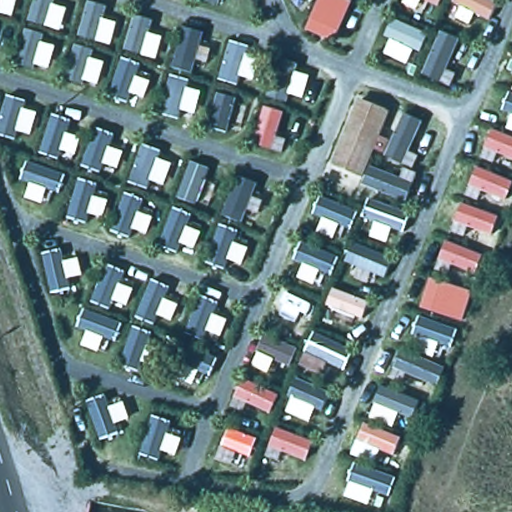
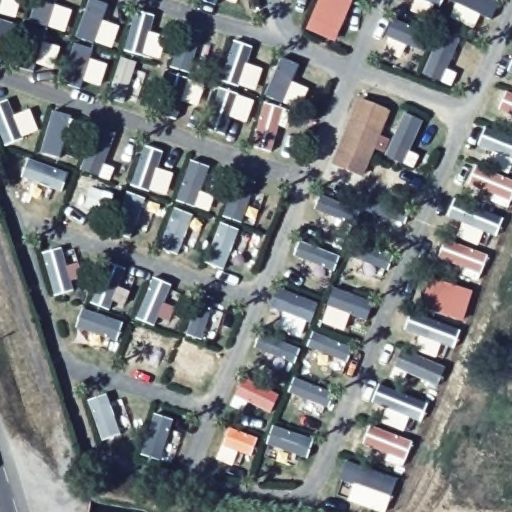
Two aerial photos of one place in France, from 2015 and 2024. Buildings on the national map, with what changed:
unchanged [(375,164),(367,161),(360,178),(330,167),(357,102),(386,113),(373,145),(382,149),(375,164)]

